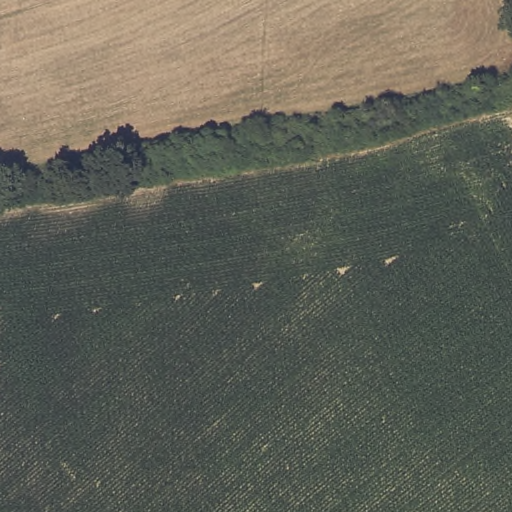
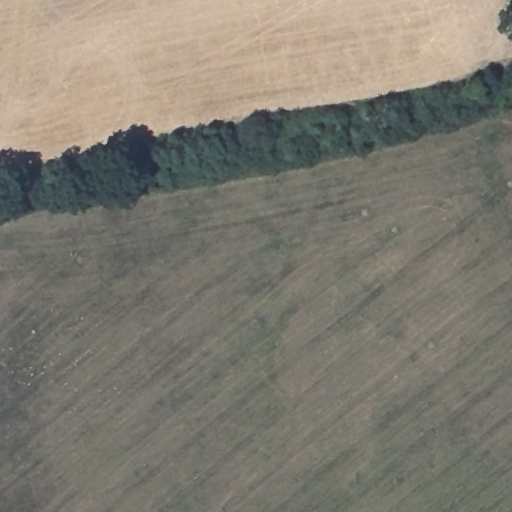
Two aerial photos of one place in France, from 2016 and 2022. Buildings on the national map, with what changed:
[]

